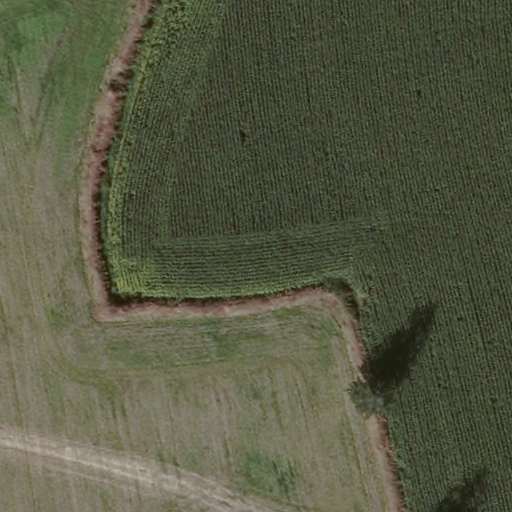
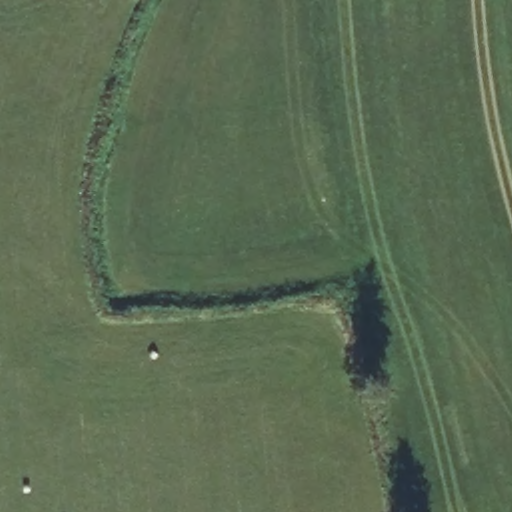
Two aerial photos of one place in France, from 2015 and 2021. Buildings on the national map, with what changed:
[]

